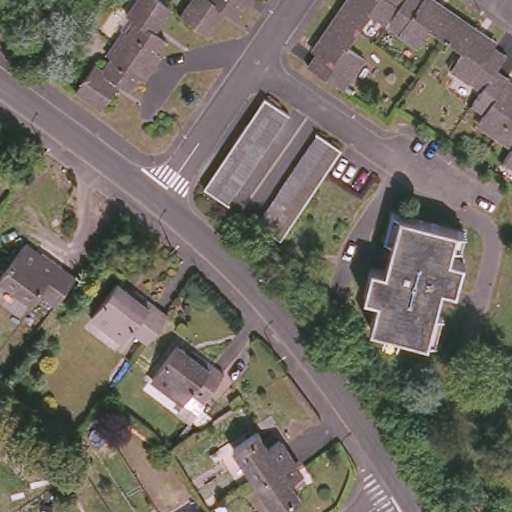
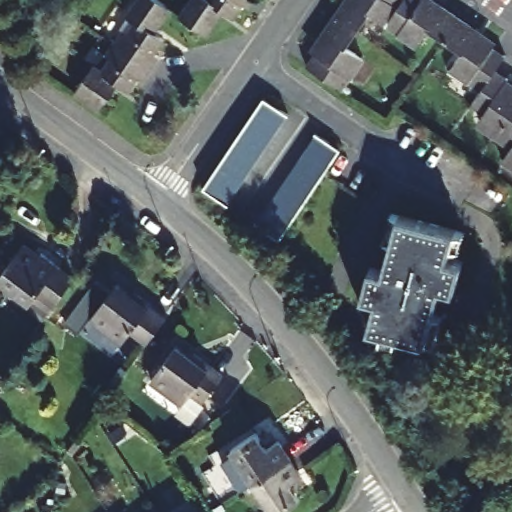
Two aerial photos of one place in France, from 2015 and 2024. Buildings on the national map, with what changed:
unchanged [(135,17),(127,12),(135,0),(164,0),(170,4),(155,28),(164,34),(155,48),(159,51),(150,64),(115,39),(123,27),(127,29),(135,17)]
unchanged [(243,4),(233,18),(224,12),(207,35),(180,16),(192,0),(252,0),(247,7),(243,4)]
unchanged [(357,25),(335,9),(342,0),(399,0),(385,19),(369,7),(357,25)]
unchanged [(417,40),(385,19),(399,0),(432,0),(440,5),(442,2),(458,13),(444,34),(427,23),(417,40)]
unchanged [(346,41),(362,52),(342,83),(307,60),(329,30),(324,26),(335,9),(357,25),(346,41)]
unchanged [(450,64),(461,46),(444,34),(458,13),(475,25),(474,28),(505,50),(495,65),(481,85),(450,64)]
unchanged [(143,75),(138,72),(129,86),(119,80),(102,104),(89,96),(77,87),(95,59),(103,65),(110,53),(107,50),(115,39),(150,64),(143,75)]
unchanged [(496,123),(480,112),(482,107),(471,99),(481,85),(495,65),(506,72),(502,79),(512,86),(512,111),(507,107),(496,123)]
unchanged [(279,125),(272,136),(265,147),(257,159),(249,170),(242,181),(235,192),(227,203),(204,188),(211,177),(219,165),(225,155),(234,143),(240,132),(248,121),(255,110),(263,98),(287,114),(279,125)]
unchanged [(502,154),(512,141),(493,128),(496,123),(507,107),(512,111),(512,161),(502,154)]
unchanged [(323,172),(315,183),(309,193),(300,205),(294,215),(286,227),(279,238),(255,223),(263,211),(270,200),(277,189),(285,178),(292,167),(300,156),(307,144),(315,133),(338,149),(331,160),(323,172)]
unchanged [(368,294),(375,266),(389,270),(395,242),(388,240),(395,212),(468,232),(465,246),(457,244),(452,257),(466,261),(458,289),(445,285),(437,314),(445,316),(439,344),(403,334),(401,341),(387,337),(389,330),(374,326),(382,299),(368,294)]
unchanged [(0,273),(22,244),(38,255),(40,252),(72,275),(52,304),(37,292),(30,301),(0,280),(0,273)]
unchanged [(95,318),(120,284),(135,295),(138,291),(171,315),(151,342),(150,343),(134,332),(126,341),(95,318)]
unchanged [(194,354),(222,374),(201,401),(189,393),(182,402),(150,379),(174,346),(190,358),(194,354)]
unchanged [(255,435),(266,452),(277,445),(289,461),(253,484),(232,452),(255,435)]
unchanged [(300,479),(288,487),(299,502),(285,512),(271,512),(253,484),(289,461),(300,479)]
unchanged [(202,508),(205,512),(193,512),(201,507),(202,508)]
unchanged [(504,511),(504,512),(503,512),(504,511)]

